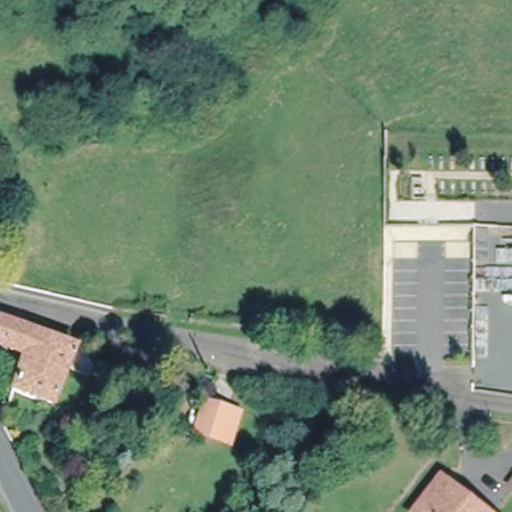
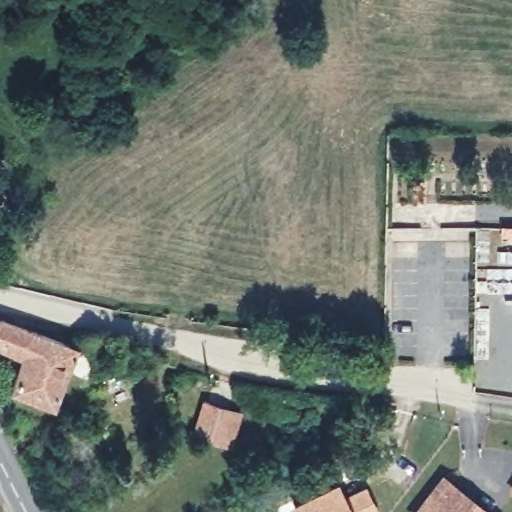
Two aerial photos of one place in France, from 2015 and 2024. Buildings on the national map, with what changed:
demolished [(502,249),(502,229),(512,229),(512,249),(502,249)]
unchanged [(26,354),(0,344),(0,320),(34,332),(26,354)]
unchanged [(14,390),(26,354),(34,332),(76,347),(75,349),(98,357),(91,377),(67,369),(54,405),(14,390)]
unchanged [(228,445),(220,442),(194,433),(203,402),(229,410),(237,412),(228,445)]
unchanged [(460,487),(474,496),(493,507),(499,512),(422,512),(444,477),(460,487)]
new [(292,512),(288,503),(337,481),(344,495),(367,486),(379,512),(292,512)]

